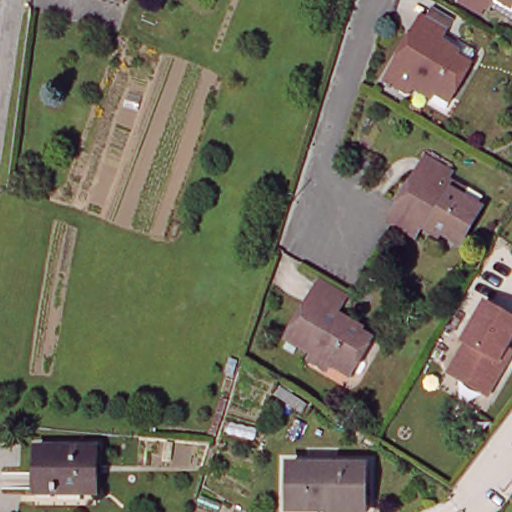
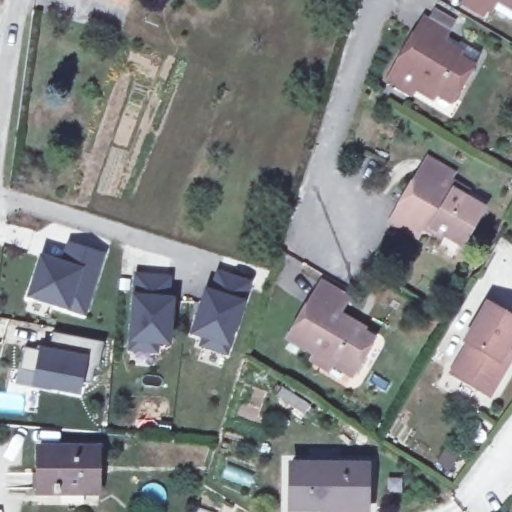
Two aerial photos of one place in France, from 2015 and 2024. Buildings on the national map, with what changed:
unchanged [(114,0),(127,0),(126,3),(114,0)]
unchanged [(474,0),(486,0),(483,5),(474,0)]
unchanged [(507,0),(512,0),(512,3),(507,0)]
unchanged [(449,31),(439,46),(470,66),(448,101),(420,82),(409,98),(381,82),(423,16),(449,31)]
unchanged [(449,176),(442,187),(480,211),(461,243),(420,219),(410,237),(381,220),(418,160),(449,176)]
new [(30,295),(41,256),(65,263),(71,243),(102,253),(84,311),(30,295)]
new [(226,351),(202,343),(204,335),(193,331),(206,290),(211,292),(218,272),(248,282),(226,351)]
new [(156,341),(155,350),(129,348),(136,275),(168,278),(166,299),(171,299),(168,343),(156,341)]
unchanged [(346,293),(332,312),(376,338),(353,374),(286,334),(320,280),(346,293)]
unchanged [(484,394),(474,388),(447,372),(464,342),(461,340),(484,302),(512,319),(512,332),(503,347),(507,350),(500,362),(502,363),(493,379),(484,394)]
new [(70,380),(69,391),(33,384),(35,373),(19,369),(23,346),(47,351),(51,332),(103,342),(96,366),(91,366),(88,384),(70,380)]
unchanged [(94,445),(93,487),(33,484),(34,443),(94,445)]
unchanged [(366,467),(366,505),(333,507),(333,512),(292,512),(291,467),(366,467)]

